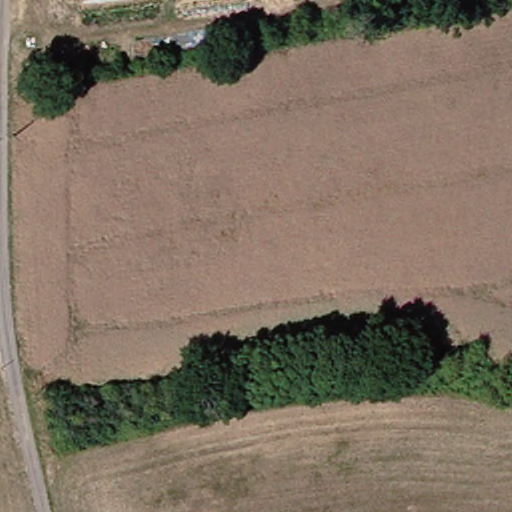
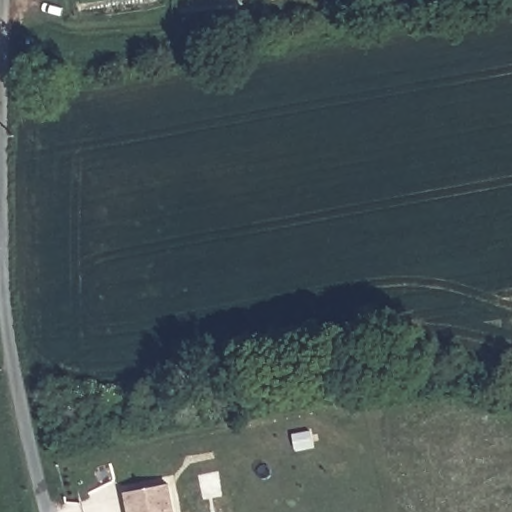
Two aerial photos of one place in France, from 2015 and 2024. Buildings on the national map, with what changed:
new [(167,486),(173,512),(129,512),(125,493),(167,486)]

